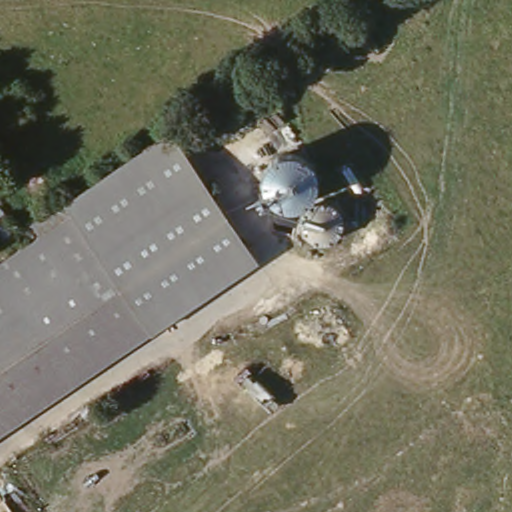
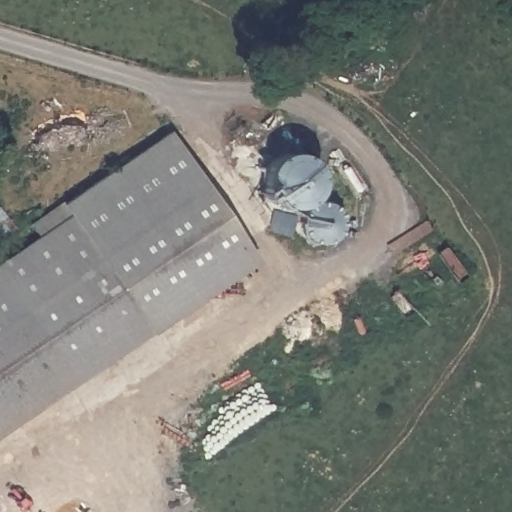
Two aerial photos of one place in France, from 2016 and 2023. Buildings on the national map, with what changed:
unchanged [(263,259),(0,430),(0,323),(81,270),(46,215),(178,129),(214,184),(252,242),(263,259)]
unchanged [(265,169),(271,161),(282,155),(294,155),(306,159),(315,167),(320,177),(320,188),(315,200),(308,206),(298,208),(288,209),(278,206),(272,202),(267,195),(261,180),(265,169)]
unchanged [(337,205),(343,217),(343,227),(336,239),(320,242),(307,236),(301,222),(300,207),(308,206),(315,200),(337,205)]
unchanged [(81,270),(0,323),(0,260),(34,235),(29,225),(46,215),(81,270)]

